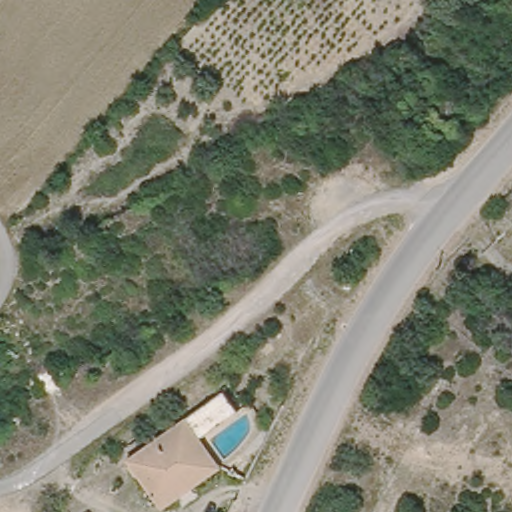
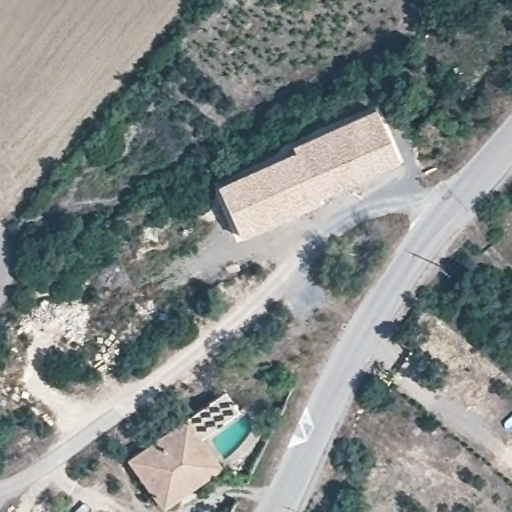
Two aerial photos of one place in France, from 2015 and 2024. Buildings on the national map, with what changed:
new [(290,149),(288,144),(373,106),(398,161),(317,198),(318,201),(240,238),(215,184),(290,149)]
unchanged [(159,512),(154,512),(123,459),(190,416),(220,395),(235,416),(203,437),(227,473),(159,512)]

